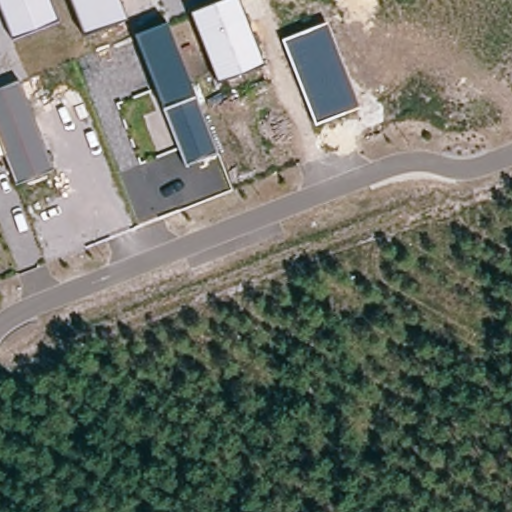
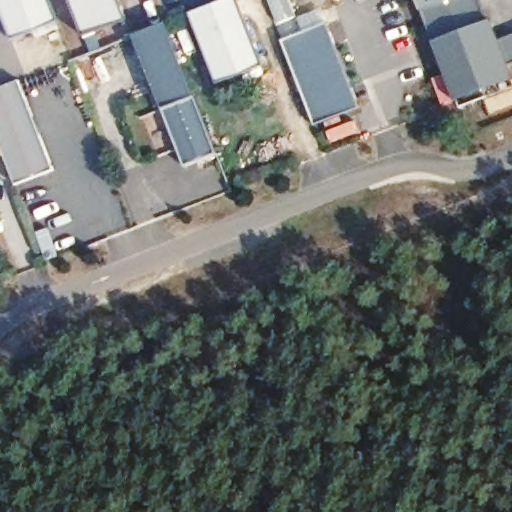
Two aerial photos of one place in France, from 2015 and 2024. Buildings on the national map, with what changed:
unchanged [(60,21),(13,39),(0,7),(0,0),(52,0),(53,4),(60,21)]
unchanged [(85,41),(69,0),(119,0),(128,24),(85,41)]
unchanged [(240,0),(266,64),(219,83),(190,12),(220,0),(240,0)]
new [(490,19),(432,40),(416,0),(480,0),(482,8),(490,19)]
new [(432,40),(490,19),(498,39),(508,64),(512,74),(512,81),(441,108),(431,79),(444,74),(432,40)]
unchanged [(135,35),(166,22),(195,94),(218,153),(185,166),(163,106),(135,35)]
unchanged [(282,40),(328,23),(360,109),(314,125),(282,40)]
new [(512,63),(508,64),(498,39),(512,34),(512,63)]
unchanged [(20,80),(56,169),(18,184),(6,154),(0,139),(0,88),(20,80)]
unchanged [(6,154),(0,157),(0,139),(6,154)]

